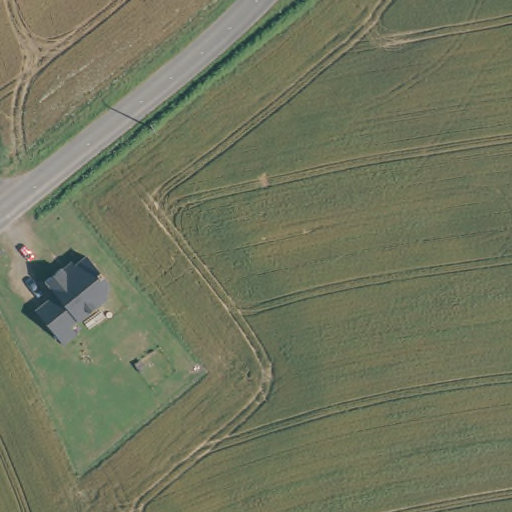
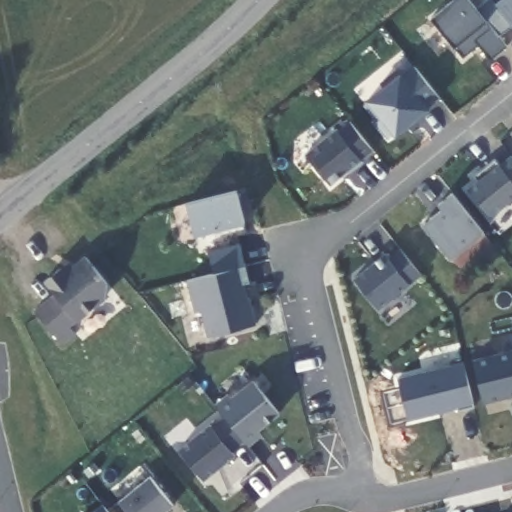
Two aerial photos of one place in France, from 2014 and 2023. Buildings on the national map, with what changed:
new [(498,35),(506,44),(490,58),(478,42),(463,55),(455,44),(432,17),(454,0),(471,0),(475,5),(483,0),(493,0),(495,3),(499,0),(512,0),(512,23),(498,35)]
new [(379,81),(396,67),(400,72),(413,62),(439,97),(427,106),(428,107),(396,135),(394,132),(387,136),(376,122),(381,117),(365,98),(383,86),(379,81)]
new [(305,152),(347,120),(372,153),(331,185),(305,152)]
new [(468,187),(477,181),(473,174),(494,158),(498,164),(510,154),(512,156),(512,201),(490,218),(468,187)]
new [(195,235),(186,201),(237,189),(245,222),(195,235)]
new [(423,223),(443,208),(440,204),(454,192),(486,232),(451,259),(423,223)]
unchanged [(110,272),(109,286),(73,317),(79,324),(65,335),(37,301),(57,284),(47,273),(62,259),(69,265),(89,247),(110,272)]
new [(354,277),(388,252),(390,256),(400,247),(421,274),(377,308),(354,277)]
new [(200,310),(194,311),(185,280),(244,266),(249,283),(244,284),(255,324),(207,336),(200,310)]
new [(483,401),(473,358),(512,349),(512,395),(483,401)]
new [(458,407),(406,419),(397,378),(465,362),(474,406),(459,409),(458,407)]
new [(180,449),(214,422),(215,423),(224,416),(215,404),(227,394),(230,397),(253,379),(280,413),(258,431),(262,436),(248,447),(244,441),(233,450),(236,454),(205,478),(180,449)]
new [(151,476),(174,506),(166,512),(128,512),(119,500),(151,476)]
new [(110,512),(92,512),(102,503),(110,512)]

